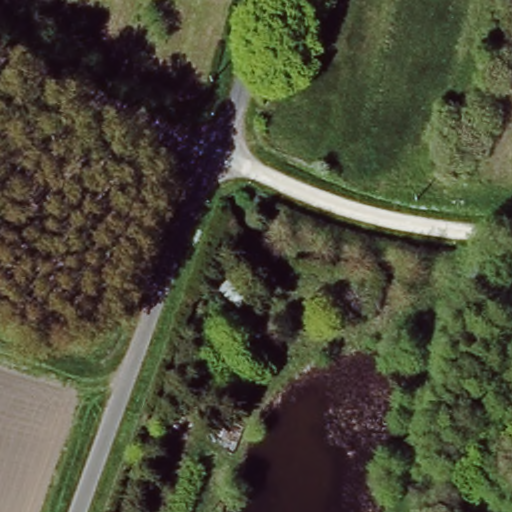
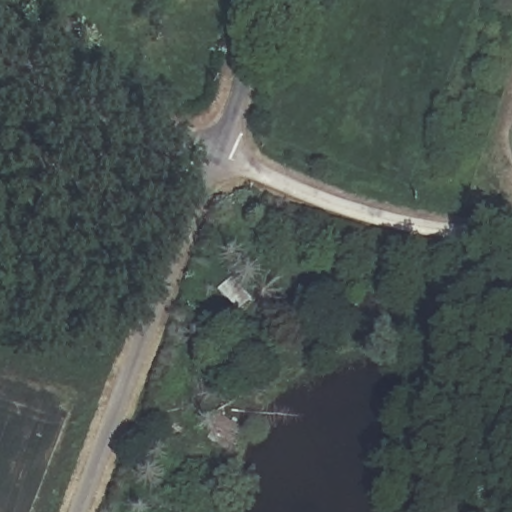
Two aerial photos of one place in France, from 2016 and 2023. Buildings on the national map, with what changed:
unchanged [(247,298),(228,314),(210,296),(229,277),(247,298)]

